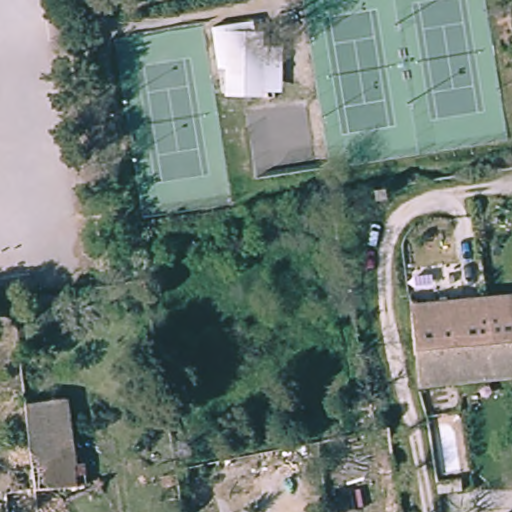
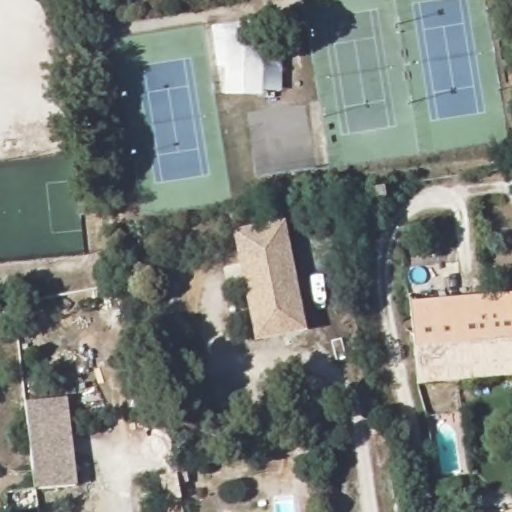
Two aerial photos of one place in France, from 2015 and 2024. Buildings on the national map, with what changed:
unchanged [(232,97),(233,76),(233,72),(226,72),(219,34),(259,26),(261,40),(268,40),(267,77),(267,98),(232,97)]
unchanged [(387,198),(377,199),(375,187),(386,186),(387,198)]
new [(285,220),(306,331),(254,341),(231,230),(285,220)]
unchanged [(512,292),(512,382),(418,390),(409,302),(512,292)]
unchanged [(22,396),(30,396),(32,402),(65,398),(71,465),(82,464),(85,485),(34,488),(31,462),(22,396)]
unchanged [(321,456),(302,460),(300,445),(319,441),(321,456)]
unchanged [(196,480),(189,481),(190,487),(181,490),(177,467),(193,464),(196,480)]
unchanged [(6,509),(5,501),(4,492),(34,488),(37,506),(6,509)]

